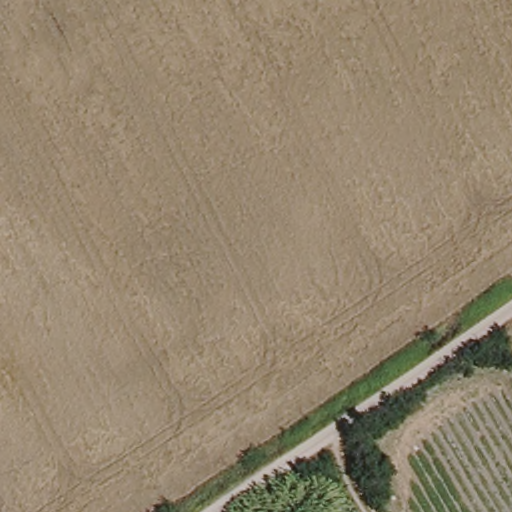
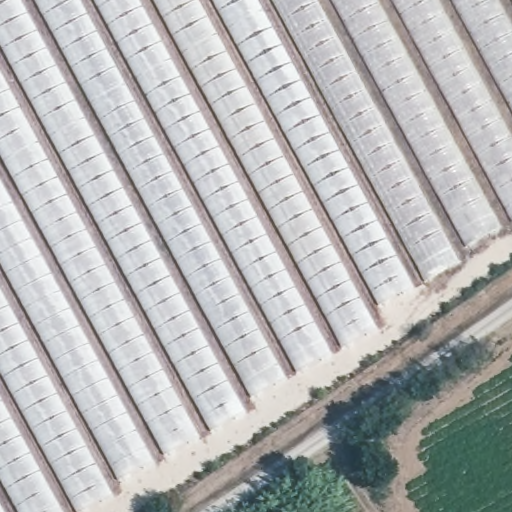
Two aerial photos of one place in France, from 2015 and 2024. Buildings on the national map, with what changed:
new [(241,402),(246,411),(106,486),(112,497),(83,512),(0,512),(0,0),(210,0),(328,211),(379,306),(388,323),(241,402)]
new [(379,306),(328,211),(210,0),(259,0),(415,287),(379,306)]
unchanged [(265,0),(512,0),(512,222),(422,283),(265,0)]

